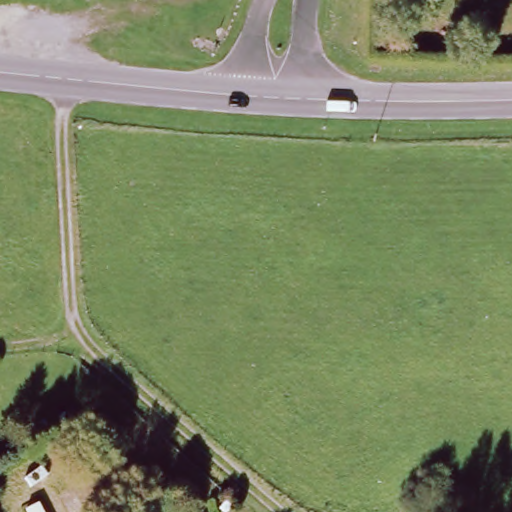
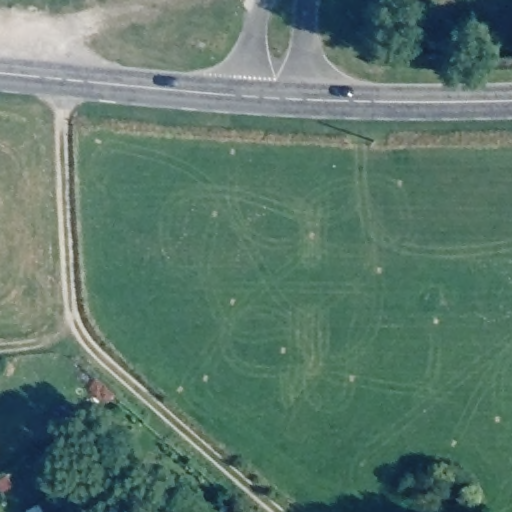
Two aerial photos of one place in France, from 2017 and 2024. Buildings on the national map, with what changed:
unchanged [(25,509),(41,501),(48,512),(26,512),(25,509)]

